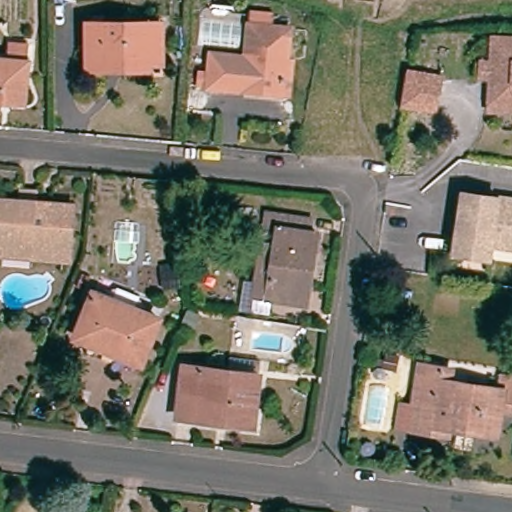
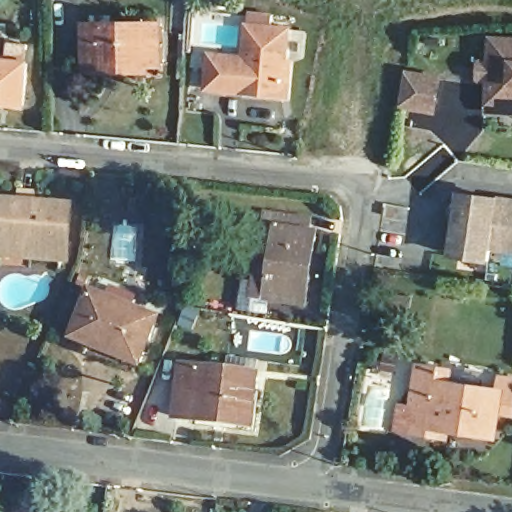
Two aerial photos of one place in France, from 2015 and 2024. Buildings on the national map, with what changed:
unchanged [(207,92),(209,67),(206,67),(207,57),(231,60),(230,66),(244,67),(249,30),(250,17),(274,21),(274,32),(290,35),(287,67),(294,67),(289,102),(283,102),(242,97),(207,92)]
unchanged [(105,77),(88,77),(86,29),(146,29),(159,28),(159,68),(148,69),(148,77),(105,77)]
unchanged [(491,112),(492,104),(493,74),(482,73),(482,58),(493,59),(494,35),(512,36),(512,112),(491,112)]
unchanged [(0,67),(1,52),(23,53),(21,69),(18,112),(0,110),(0,67)]
unchanged [(439,76),(434,108),(403,103),(403,102),(408,71),(439,76)]
unchanged [(512,198),(512,246),(491,242),(489,257),(453,252),(463,190),(512,198)]
unchanged [(30,260),(0,258),(0,243),(1,229),(0,229),(0,211),(17,212),(18,201),(34,202),(33,214),(68,216),(66,248),(61,247),(59,269),(29,267),(30,260)]
unchanged [(243,320),(247,291),(256,292),(262,252),(274,255),(276,241),(265,240),(268,222),(312,230),(310,242),(318,244),(315,265),(310,264),(305,293),(310,294),(307,315),(274,310),(270,325),(243,320)]
unchanged [(95,297),(161,324),(141,371),(99,353),(100,350),(78,342),(95,297)]
unchanged [(197,425),(196,430),(174,427),(181,376),(225,382),(228,367),(257,371),(255,386),(249,432),(197,425)]
unchanged [(503,383),(512,385),(512,419),(501,417),(497,441),(450,434),(449,441),(398,433),(401,412),(413,413),(420,372),(439,375),(453,377),(451,388),(501,396),(503,383)]

